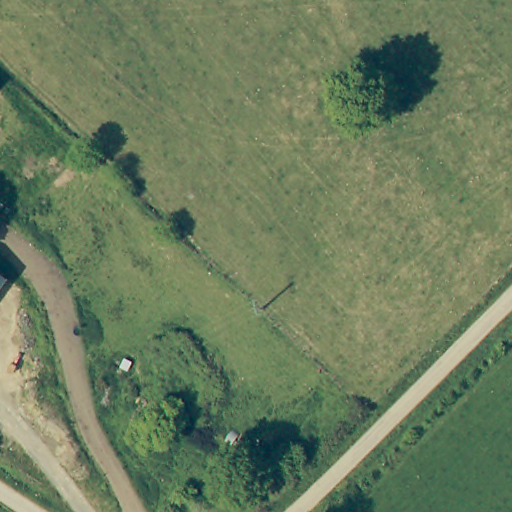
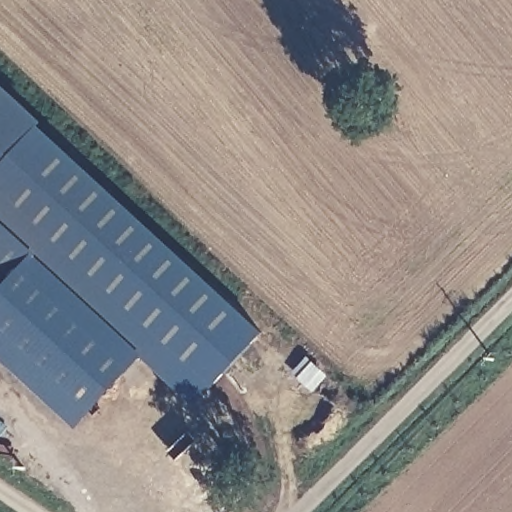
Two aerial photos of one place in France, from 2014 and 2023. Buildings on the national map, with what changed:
unchanged [(0,88),(3,91),(40,124),(0,167),(0,88)]
new [(33,258),(16,280),(8,275),(0,270),(0,167),(40,124),(263,332),(197,407),(33,258)]
unchanged [(0,287),(0,270),(8,275),(0,287)]

